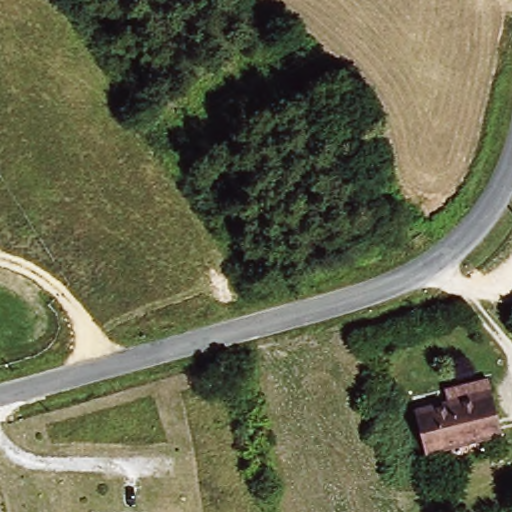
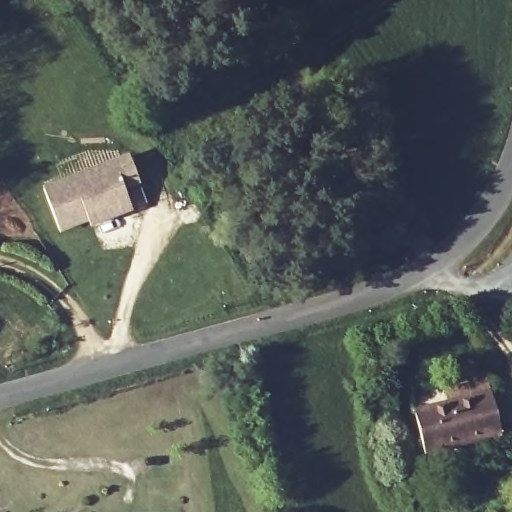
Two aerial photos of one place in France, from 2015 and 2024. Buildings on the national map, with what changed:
new [(142,185),(125,191),(134,212),(91,228),(89,222),(60,234),(42,187),(130,153),(142,185)]
unchanged [(423,455),(415,418),(446,410),(444,398),(487,388),(498,437),(423,455)]

